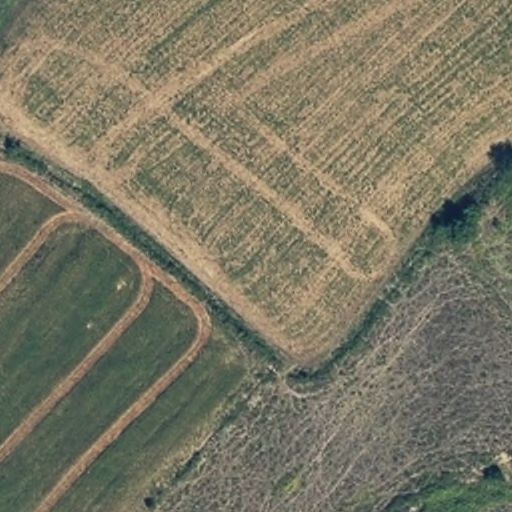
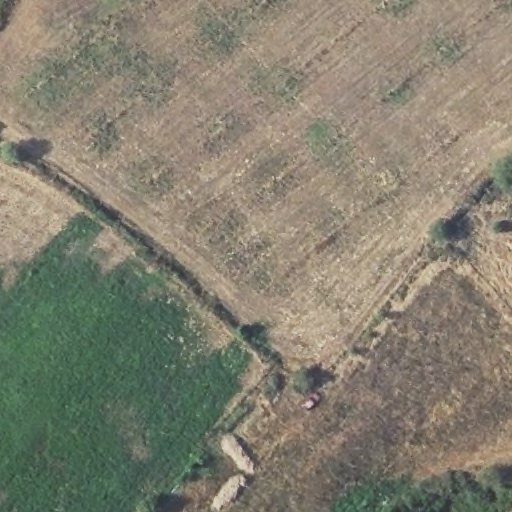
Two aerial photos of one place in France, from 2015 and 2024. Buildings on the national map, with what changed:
[]

